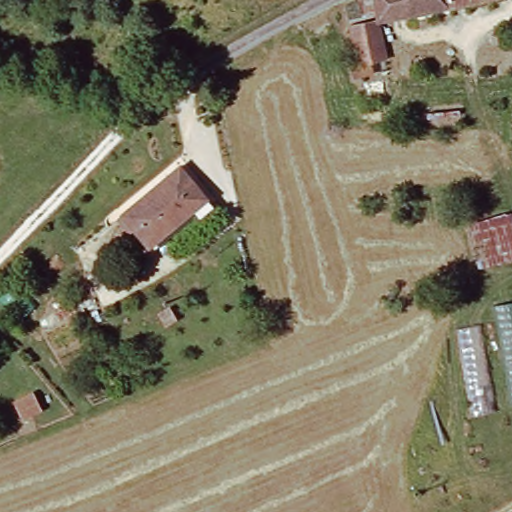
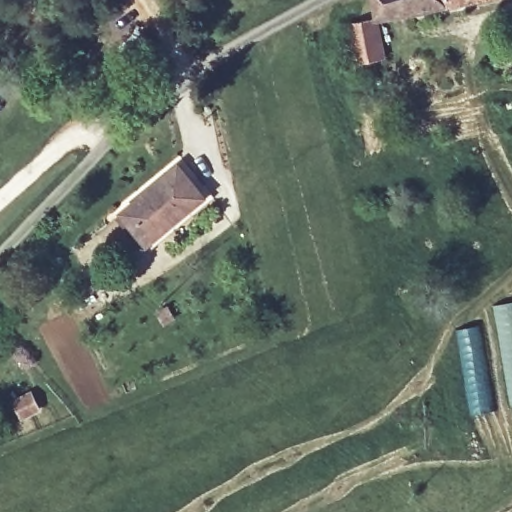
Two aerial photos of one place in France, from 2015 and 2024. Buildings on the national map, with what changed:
unchanged [(512,1),(378,24),(372,0),(511,0),(512,1)]
unchanged [(349,30),(378,24),(386,64),(356,70),(349,30)]
unchanged [(189,207),(194,215),(153,250),(123,212),(178,169),(201,198),(189,207)]
demolished [(468,227),(511,217),(512,223),(512,264),(478,271),(468,227)]
unchanged [(457,328),(495,322),(492,305),(512,301),(512,304),(512,406),(468,413),(457,328)]
unchanged [(8,397),(33,386),(44,408),(19,420),(8,397)]

